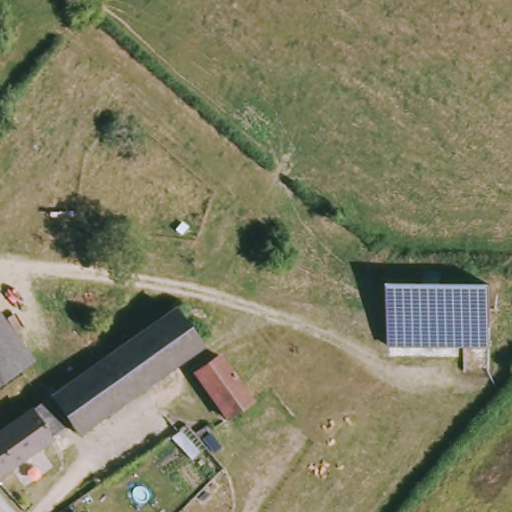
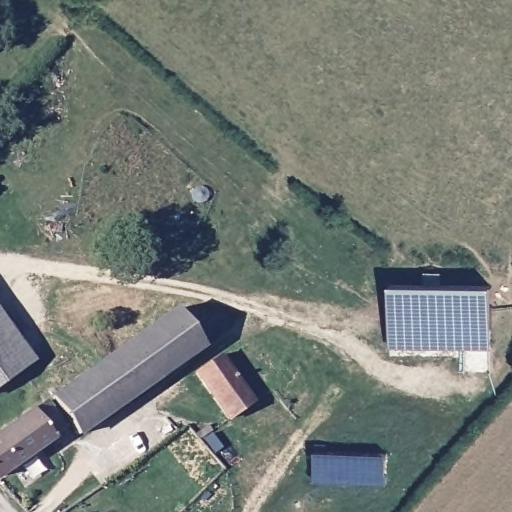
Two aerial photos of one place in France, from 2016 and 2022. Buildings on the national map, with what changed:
unchanged [(391,350),(393,286),(425,286),(424,273),(443,273),(445,286),(492,286),(493,351),(391,350)]
unchanged [(178,303),(204,340),(84,427),(58,391),(76,378),(178,303)]
unchanged [(35,362),(0,389),(0,315),(35,362)]
unchanged [(202,380),(217,368),(227,360),(262,403),(237,424),(202,380)]
unchanged [(0,471),(0,434),(51,396),(71,425),(4,476),(0,471)]
new [(313,450),(385,450),(385,480),(313,480),(313,450)]

